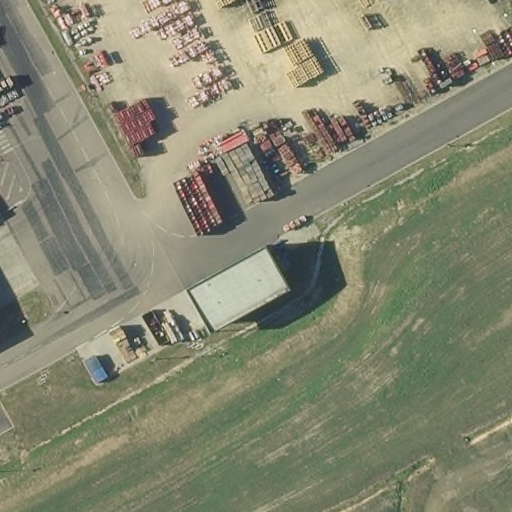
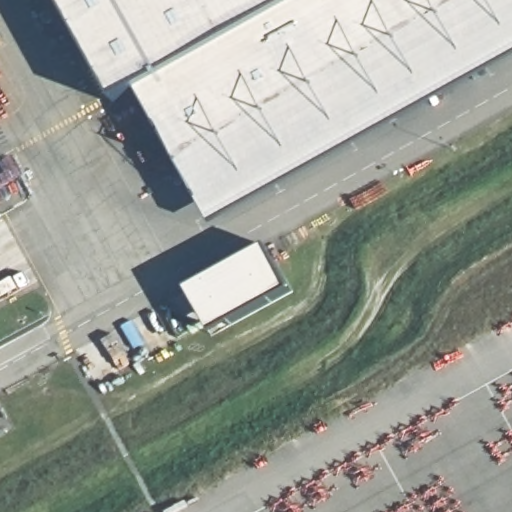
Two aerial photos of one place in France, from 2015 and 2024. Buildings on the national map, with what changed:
new [(194,209),(79,0),(512,0),(512,32),(194,209)]
new [(267,246),(292,291),(229,325),(204,281),(267,246)]
new [(204,281),(229,325),(210,335),(186,291),(204,281)]

